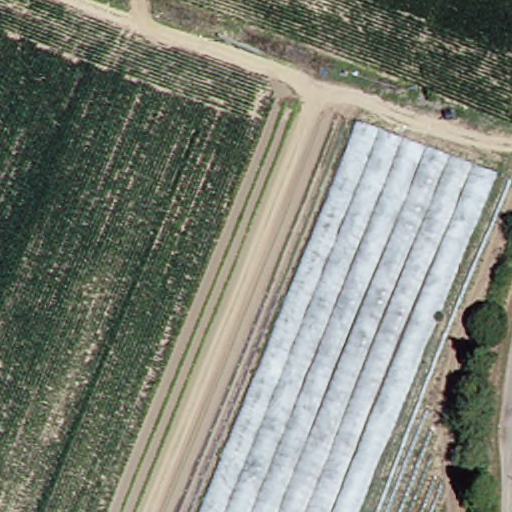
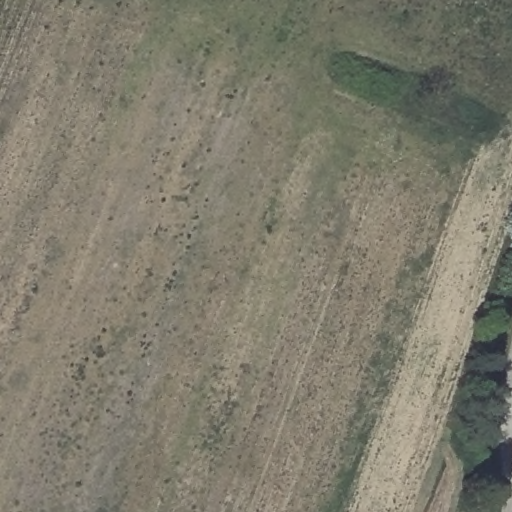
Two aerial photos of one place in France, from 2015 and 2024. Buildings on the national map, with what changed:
demolished [(489,170),(346,512),(168,512),(330,114),(489,170)]

